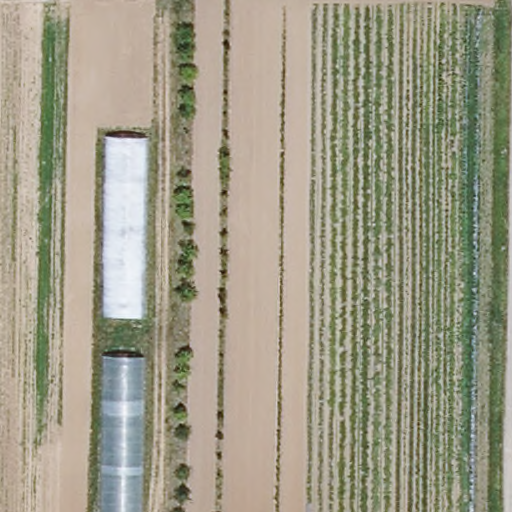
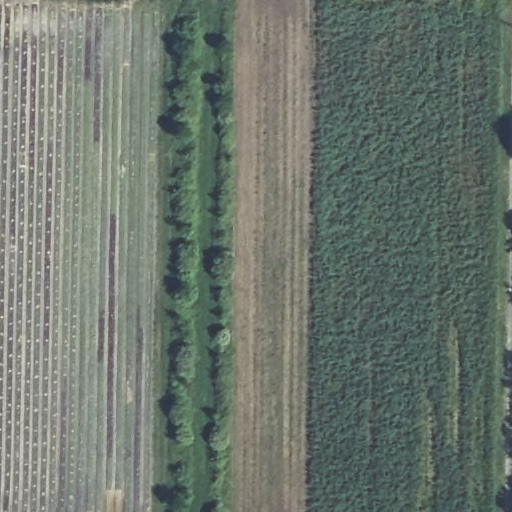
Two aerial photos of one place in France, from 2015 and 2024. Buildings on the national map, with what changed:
demolished [(105,133),(149,136),(144,317),(103,316),(105,133)]
demolished [(144,357),(142,512),(99,512),(102,355),(144,357)]

